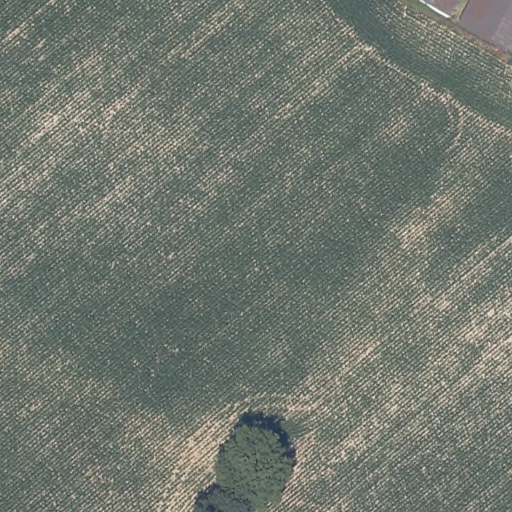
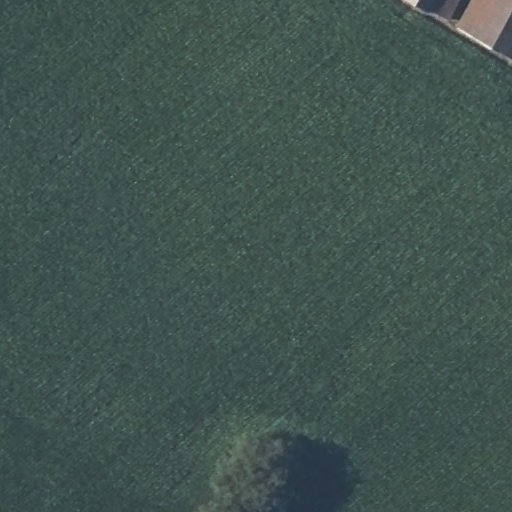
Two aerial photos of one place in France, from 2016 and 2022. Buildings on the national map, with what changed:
unchanged [(425,0),(422,6),(412,0),(425,0)]
unchanged [(422,6),(425,0),(454,0),(443,18),(422,6)]
unchanged [(480,0),(512,0),(512,55),(511,57),(463,30),(480,0)]

